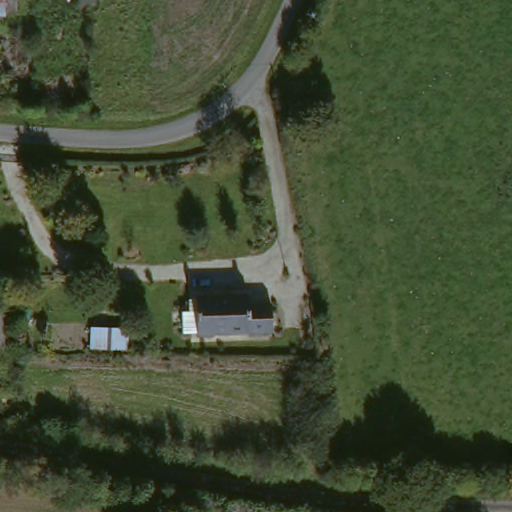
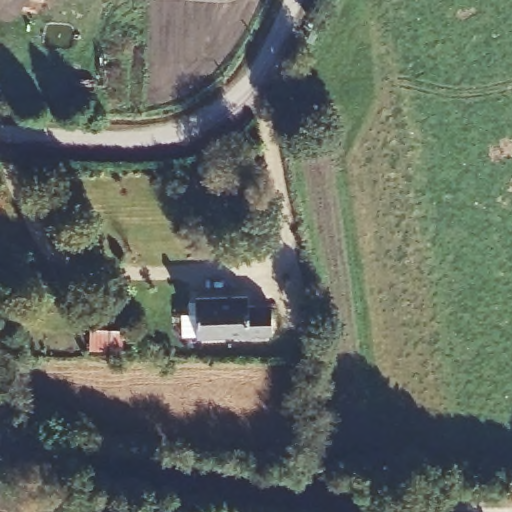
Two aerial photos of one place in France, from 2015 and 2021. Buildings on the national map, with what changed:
unchanged [(247,309),(269,309),(269,335),(196,337),(182,337),(182,315),(196,315),(196,300),(248,299),(247,309)]
unchanged [(1,313),(1,314),(4,395),(0,395),(0,313),(1,313)]

